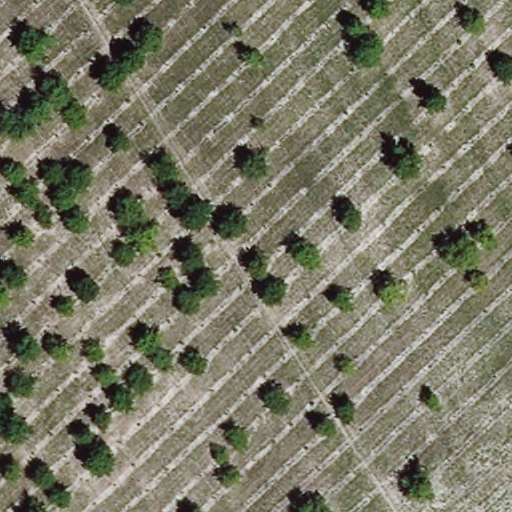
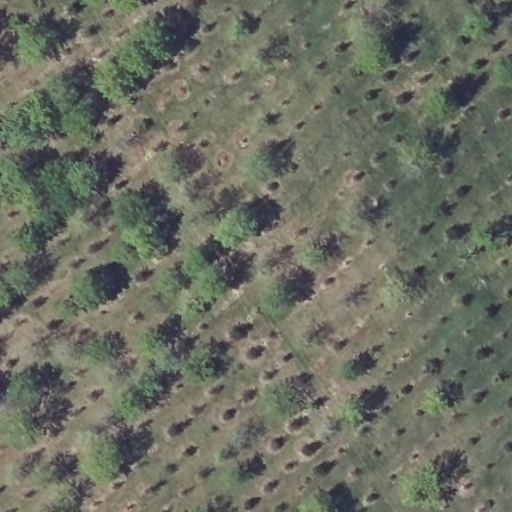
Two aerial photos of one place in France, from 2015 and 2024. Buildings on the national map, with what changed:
[]

